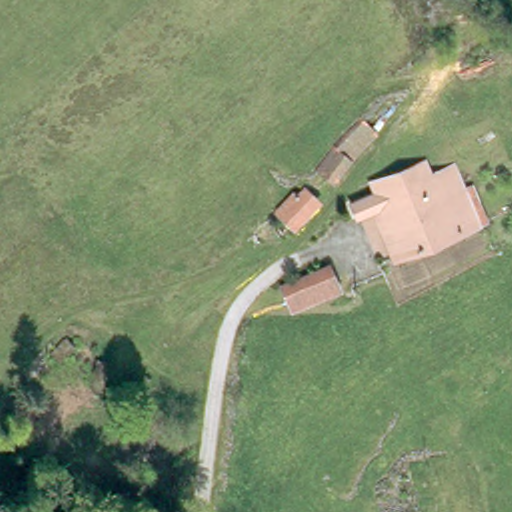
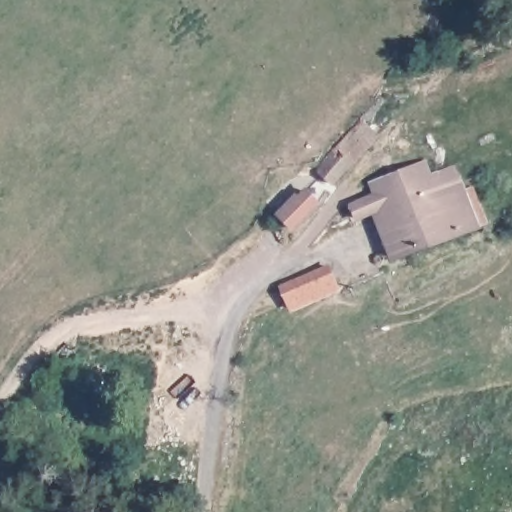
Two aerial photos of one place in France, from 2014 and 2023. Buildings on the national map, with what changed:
unchanged [(327,188),(315,177),(335,154),(347,165),(327,188)]
unchanged [(381,243),(383,243),(375,217),(353,224),(347,209),(370,200),(365,188),(411,173),(415,185),(447,174),(468,234),(387,263),(381,243)]
unchanged [(306,191),(325,208),(296,238),(276,217),(306,191)]
unchanged [(335,264),(345,293),(291,310),(280,281),(335,264)]
unchanged [(103,369),(95,365),(105,346),(112,350),(103,369)]

